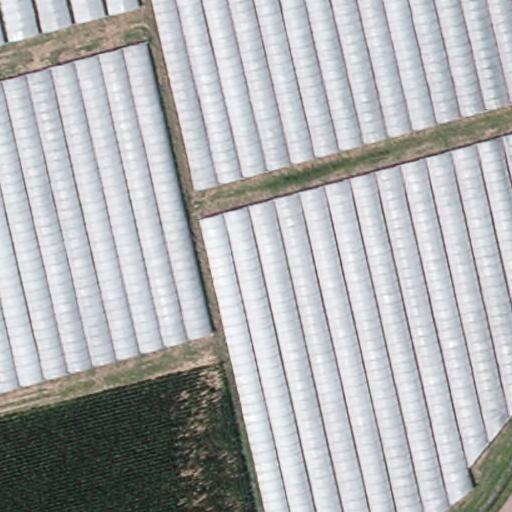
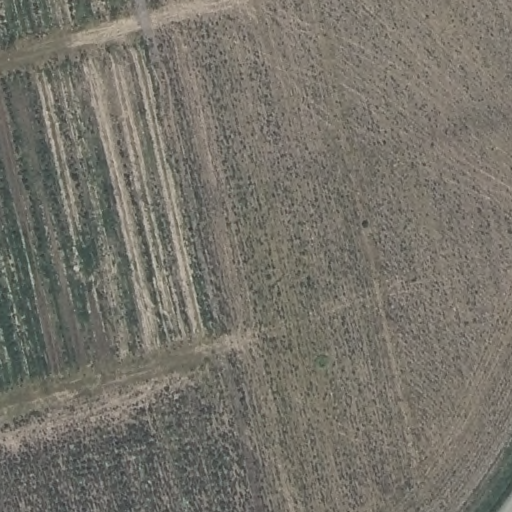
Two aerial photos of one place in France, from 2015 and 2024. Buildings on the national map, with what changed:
unchanged [(0,44),(0,0),(141,0),(142,6),(0,44)]
demolished [(156,0),(512,0),(512,102),(200,189),(156,0)]
unchanged [(215,332),(0,390),(0,80),(148,40),(215,332)]
demolished [(473,488),(443,512),(271,512),(204,215),(512,130),(512,418),(469,467),(473,488)]
new [(249,512),(0,512),(0,429),(218,370),(249,512)]

